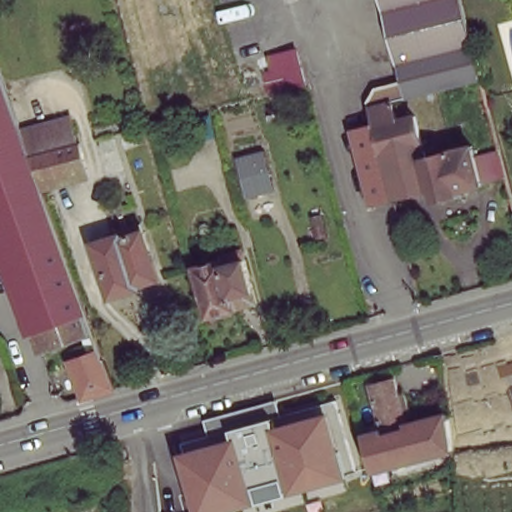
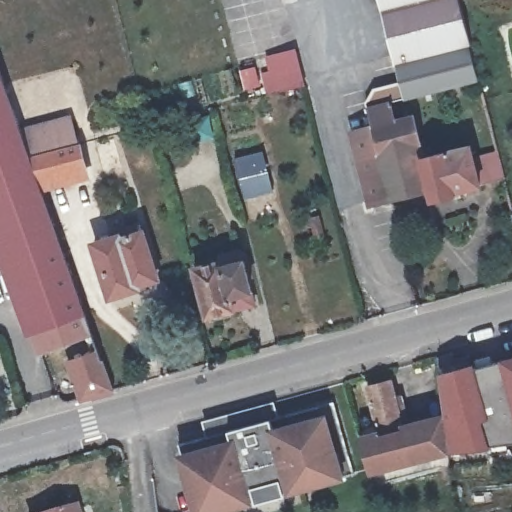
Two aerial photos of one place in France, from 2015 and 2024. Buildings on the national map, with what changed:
unchanged [(467,27),(472,49),(482,86),(412,102),(408,84),(385,0),(460,0),(467,27)]
unchanged [(270,93),(259,58),(298,47),(308,83),(270,93)]
unchanged [(74,118),(93,183),(48,201),(98,341),(37,365),(0,261),(0,62),(30,136),(74,118)]
unchanged [(375,130),(369,111),(375,93),(408,84),(412,102),(425,154),(433,153),(435,159),(473,151),(484,188),(457,196),(455,198),(437,203),(432,189),(370,204),(352,137),(375,130)]
unchanged [(263,191),(247,195),(238,157),(267,151),(273,175),(276,188),(263,191)]
unchanged [(127,242),(128,237),(142,234),(158,286),(137,293),(137,297),(112,304),(96,252),(127,242)]
unchanged [(240,254),(252,307),(203,320),(192,273),(225,265),(224,257),(240,254)]
unchanged [(78,402),(67,368),(100,356),(106,372),(113,392),(78,402)]
new [(443,412),(440,372),(475,362),(476,368),(501,361),(500,359),(512,356),(512,443),(490,446),(447,453),(444,424),(425,427),(402,431),(400,423),(443,412)]
unchanged [(377,429),(367,385),(388,380),(402,431),(425,427),(444,424),(447,453),(367,471),(361,449),(357,434),(376,430),(377,429)]
unchanged [(206,437),(203,421),(275,401),(278,416),(335,401),(353,473),(344,480),(228,512),(192,512),(175,454),(190,450),(178,443),(206,437)]
new [(86,512),(49,512),(83,502),(86,512)]

